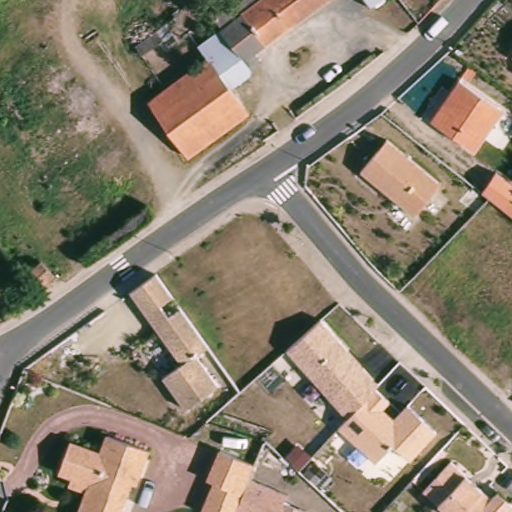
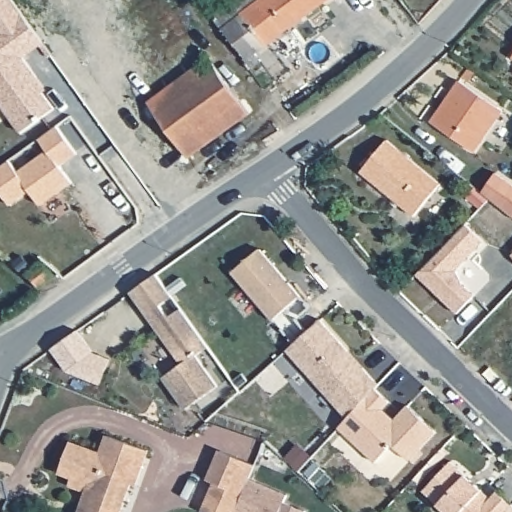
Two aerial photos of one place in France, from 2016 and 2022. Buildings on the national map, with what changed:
unchanged [(256,58),(262,66),(251,74),(250,80),(240,87),(230,94),(250,120),(188,164),(148,108),(208,64),(199,52),(207,46),(224,35),(215,24),(246,0),(335,0),(256,58)]
unchanged [(362,0),(394,0),(406,15),(383,30),(362,0)]
demolished [(183,12),(187,9),(199,26),(196,28),(169,48),(164,41),(143,56),(135,46),(183,12)]
new [(24,57),(46,89),(43,92),(55,109),(20,133),(0,105),(0,26),(20,12),(43,42),(24,57)]
unchanged [(476,154),(469,149),(437,127),(431,122),(449,95),(459,82),(497,108),(504,113),(476,154)]
new [(16,170),(45,150),(39,140),(56,125),(76,153),(59,167),(71,181),(39,204),(29,190),(9,205),(0,190),(0,165),(8,159),(16,170)]
unchanged [(265,136),(273,131),(277,138),(270,142),(265,136)]
unchanged [(441,183),(413,215),(359,170),(387,138),(441,183)]
new [(494,173),(512,185),(512,218),(480,192),(494,173)]
new [(464,224),(483,241),(454,270),(462,283),(474,295),(457,313),(416,275),(464,224)]
new [(259,249),(299,296),(272,320),(231,272),(259,249)]
unchanged [(219,387),(186,409),(163,375),(182,362),(133,289),(157,272),(170,292),(161,298),(172,315),(182,307),(208,345),(196,353),(219,387)]
unchanged [(381,386),(348,416),(287,350),(322,318),(381,386)]
unchanged [(376,390),(391,402),(383,410),(393,418),(407,406),(436,432),(409,460),(393,445),(372,461),(338,427),(348,416),(376,390)]
unchanged [(68,483),(69,476),(55,472),(66,441),(98,453),(104,436),(145,451),(133,483),(128,481),(118,511),(119,512),(78,512),(85,490),(68,483)]
unchanged [(204,483),(215,455),(250,469),(232,512),(200,512),(210,486),(204,483)]
unchanged [(499,491),(512,503),(512,512),(449,512),(439,503),(424,488),(451,458),(468,473),(492,496),(499,491)]
unchanged [(287,493),(284,502),(304,509),(303,512),(232,512),(246,478),(287,493)]

